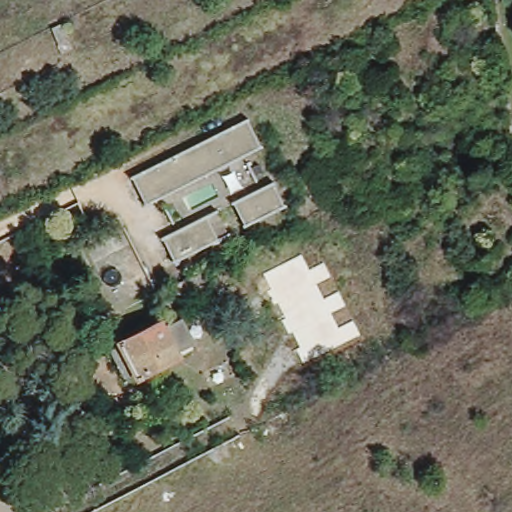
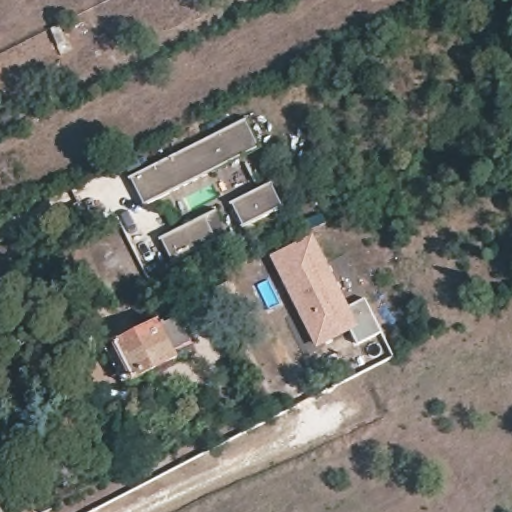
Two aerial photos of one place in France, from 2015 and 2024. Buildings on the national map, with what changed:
unchanged [(60,24),(66,40),(58,43),(51,28),(60,24)]
unchanged [(246,118),(260,148),(145,204),(131,175),(246,118)]
unchanged [(272,182),(284,207),(245,226),(232,202),(272,182)]
unchanged [(214,211),(226,235),(217,240),(173,261),(161,237),(205,215),(214,211)]
new [(366,298),(383,331),(358,344),(352,331),(317,348),(271,257),(313,236),(351,306),(366,298)]
unchanged [(191,289),(185,277),(203,269),(208,281),(191,289)]
unchanged [(112,344),(120,340),(167,316),(171,324),(185,316),(202,352),(141,382),(132,386),(112,344)]

